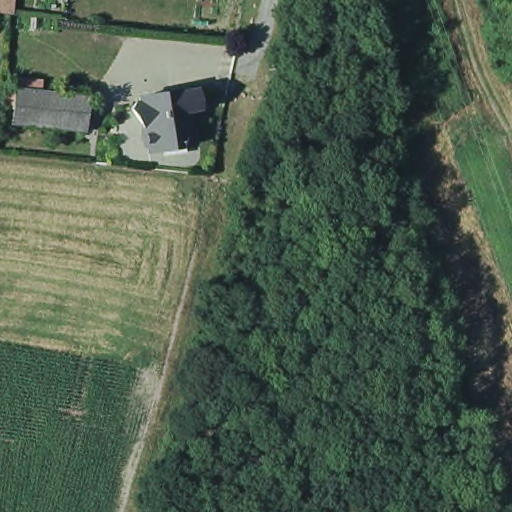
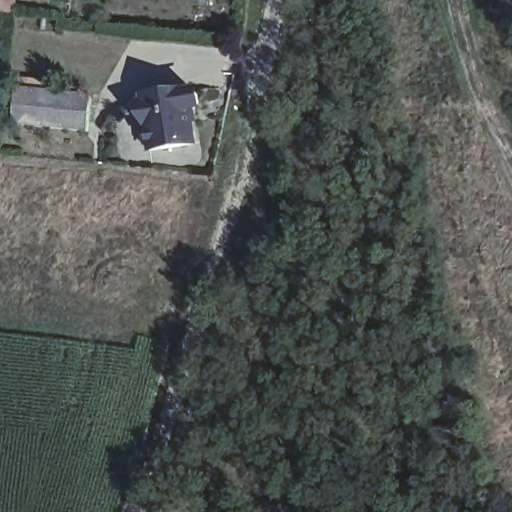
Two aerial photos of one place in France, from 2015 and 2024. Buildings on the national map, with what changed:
unchanged [(10,12),(0,11),(0,0),(16,0),(14,12),(10,12)]
unchanged [(88,132),(12,126),(16,86),(91,93),(88,132)]
unchanged [(212,119),(193,124),(198,146),(154,154),(148,129),(138,132),(133,103),(204,90),(212,119)]

